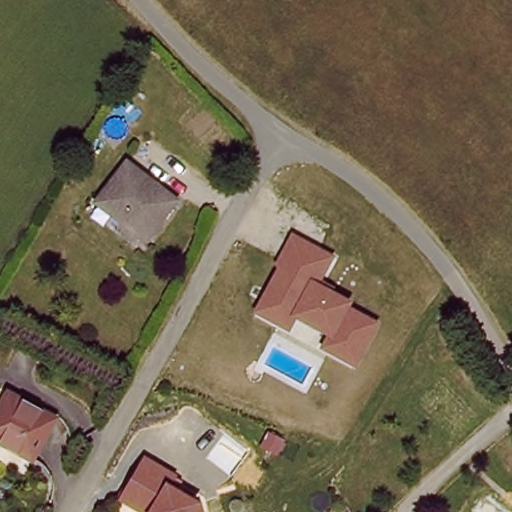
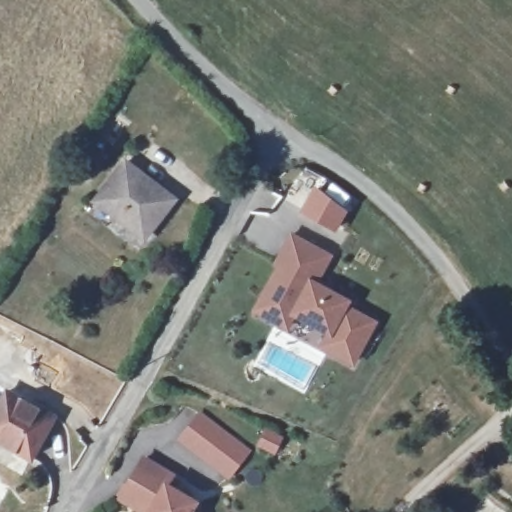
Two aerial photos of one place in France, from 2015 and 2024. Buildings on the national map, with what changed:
unchanged [(126,163),(172,200),(140,238),(95,201),(126,163)]
unchanged [(321,347),(327,333),(298,320),(291,330),(253,312),(278,266),(274,263),(291,232),(333,256),(318,282),(353,302),(350,308),(377,322),(355,365),(321,347)]
unchanged [(6,392),(51,419),(26,462),(0,447),(0,402),(6,392)]
new [(253,452),(229,482),(176,441),(199,411),(253,452)]
unchanged [(125,501),(148,461),(176,478),(171,487),(200,505),(202,512),(144,512),(125,501)]

